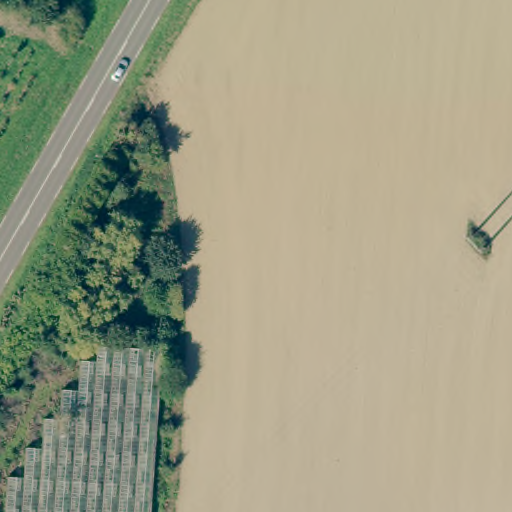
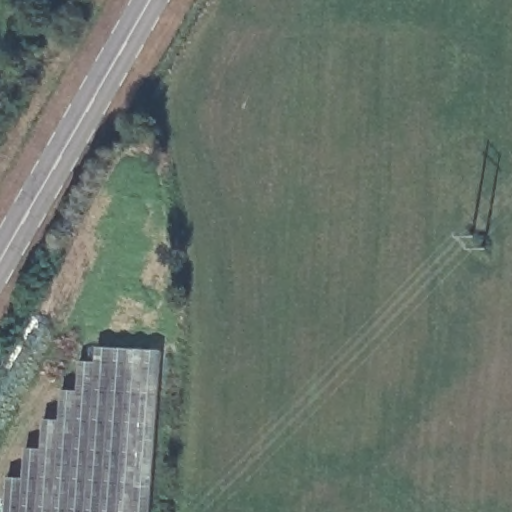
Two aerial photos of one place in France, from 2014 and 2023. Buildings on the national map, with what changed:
unchanged [(24,474),(26,445),(41,446),(43,417),(58,417),(60,386),(77,387),(79,358),(96,359),(99,345),(157,350),(145,512),(5,512),(7,474),(24,474)]

